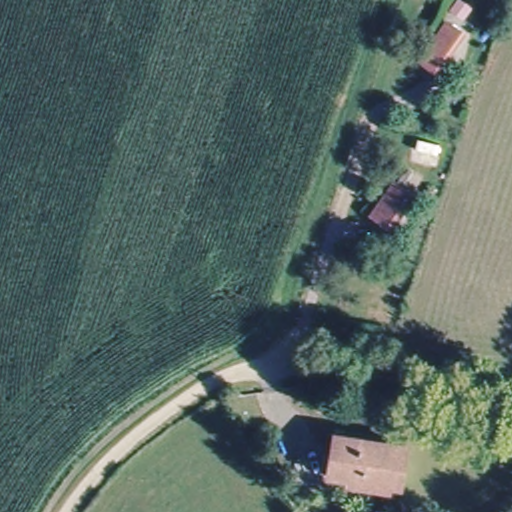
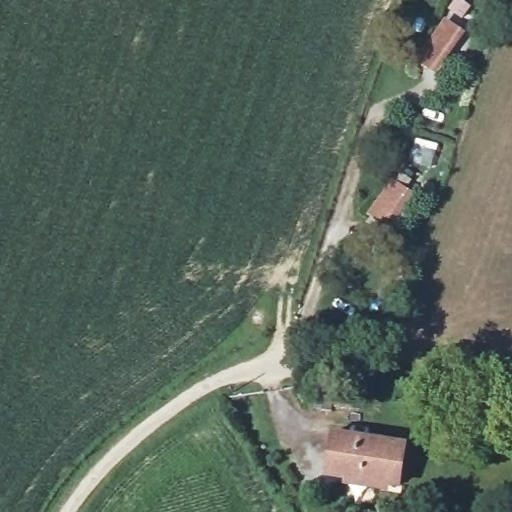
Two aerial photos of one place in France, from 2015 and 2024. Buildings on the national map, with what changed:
unchanged [(451,0),(462,0),(477,7),(435,73),(412,60),(451,0)]
unchanged [(416,194),(388,235),(362,217),(393,177),(416,194)]
unchanged [(322,474),(331,436),(405,453),(395,491),(322,474)]

